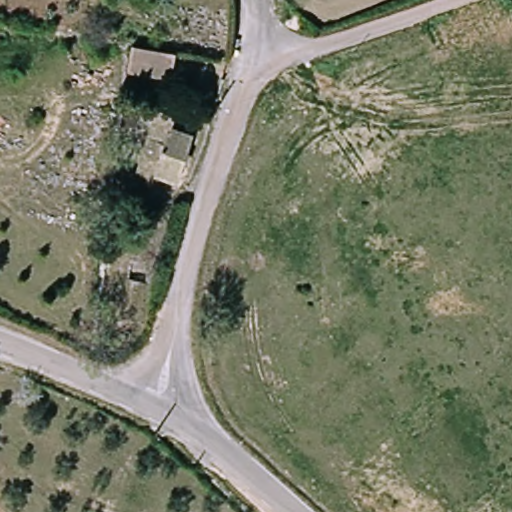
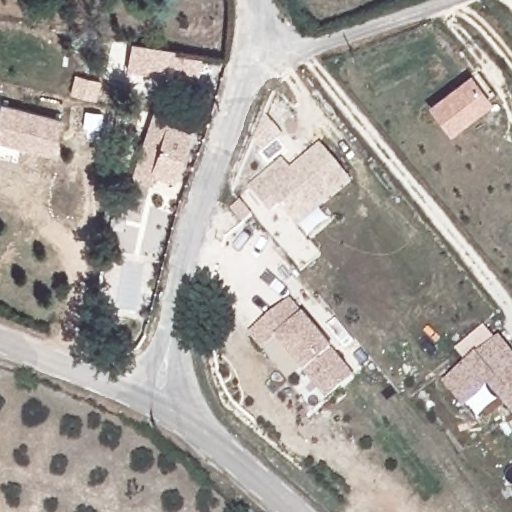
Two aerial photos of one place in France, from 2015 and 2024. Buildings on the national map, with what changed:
unchanged [(132,46),(174,52),(171,78),(128,72),(132,46)]
new [(493,104),(451,137),(427,107),(470,75),(493,104)]
new [(63,120),(53,156),(0,141),(0,107),(1,104),(63,120)]
unchanged [(190,135),(175,182),(134,169),(151,122),(190,135)]
new [(249,187),(283,158),(292,169),(321,144),(354,183),(298,229),(280,206),(271,214),(249,187)]
new [(306,375),(277,340),(264,352),(250,334),(291,300),(305,316),(335,352),(357,378),(328,402),(306,375)]
new [(484,326),(498,342),(512,359),(512,405),(492,382),(465,405),(448,384),(469,366),(456,349),(484,326)]

